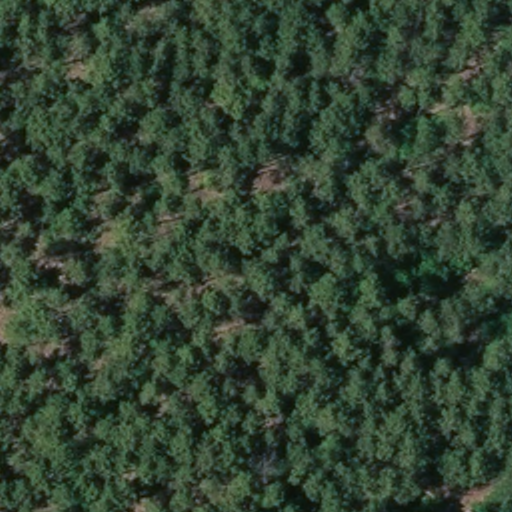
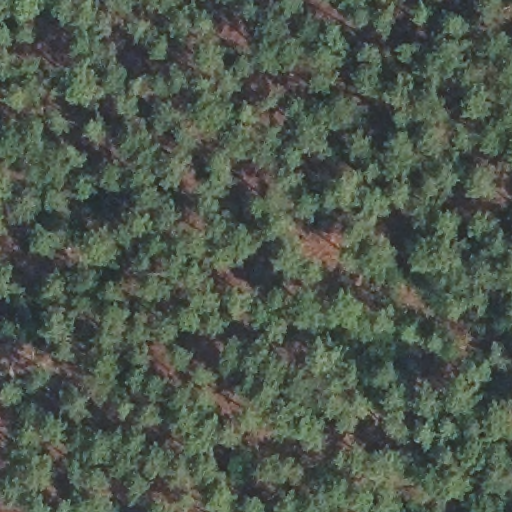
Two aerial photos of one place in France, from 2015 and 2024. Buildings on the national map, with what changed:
[]

